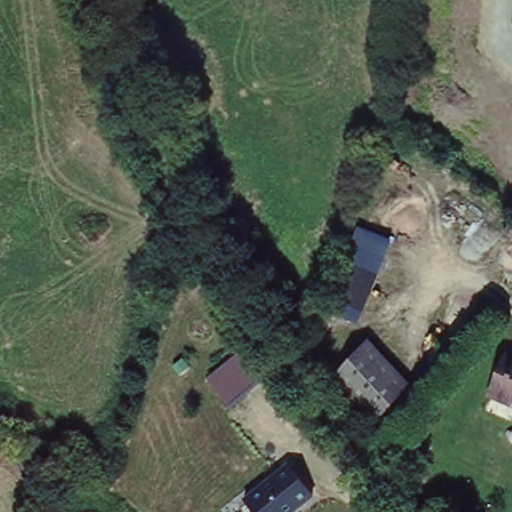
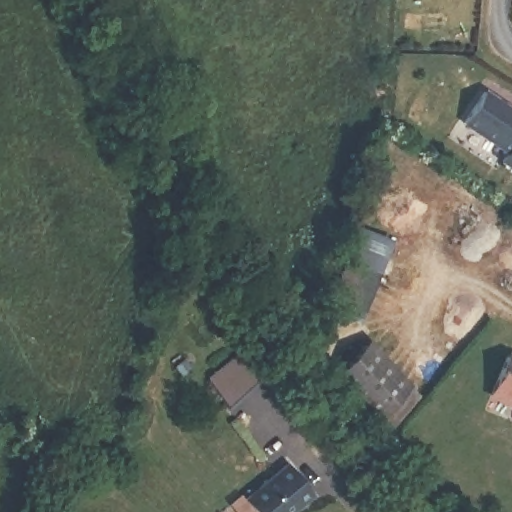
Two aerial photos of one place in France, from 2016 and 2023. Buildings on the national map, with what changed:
new [(512,166),(502,159),(508,150),(464,120),(484,90),(512,109),(512,166)]
unchanged [(356,323),(325,309),(355,225),(390,240),(356,323)]
unchanged [(378,418),(337,376),(368,344),(410,385),(378,418)]
unchanged [(229,408),(206,379),(238,354),(261,383),(229,408)]
unchanged [(512,405),(492,399),(504,359),(512,361),(512,405)]
unchanged [(294,512),(252,512),(243,502),(287,466),(314,497),(294,512)]

